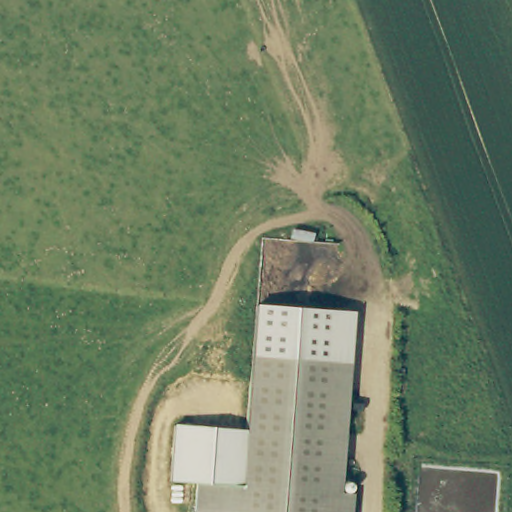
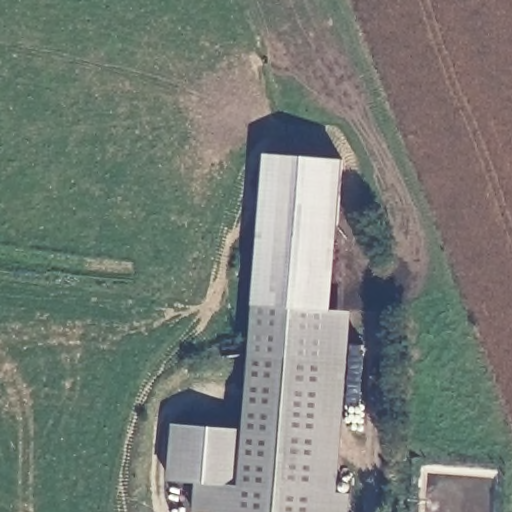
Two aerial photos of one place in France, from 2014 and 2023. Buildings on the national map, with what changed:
new [(333,312),(253,305),(265,153),(345,159),(333,312)]
unchanged [(172,482),(175,425),(244,430),(253,305),(351,313),(338,494),(352,496),(351,512),(197,512),(199,483),(172,482)]

